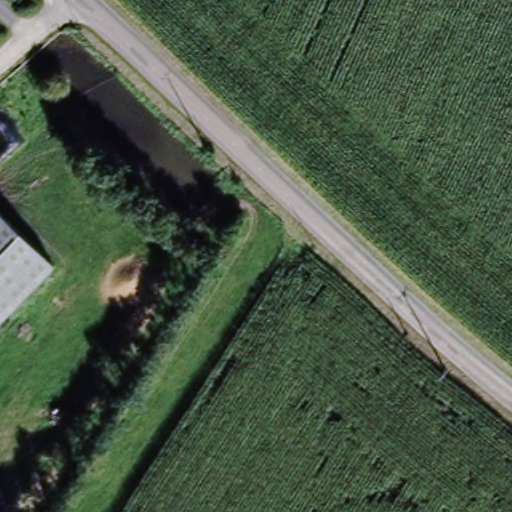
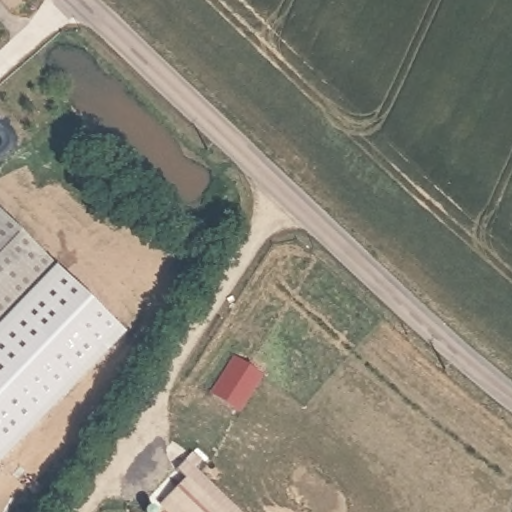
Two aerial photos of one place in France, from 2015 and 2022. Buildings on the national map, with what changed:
unchanged [(55,267),(0,324),(0,216),(55,267)]
new [(55,267),(126,332),(0,455),(0,324),(55,267)]
new [(181,459),(190,468),(235,512),(165,512),(156,503),(178,480),(170,472),(181,459)]

